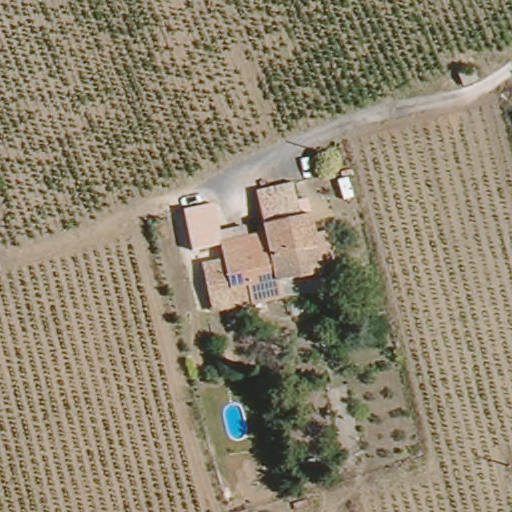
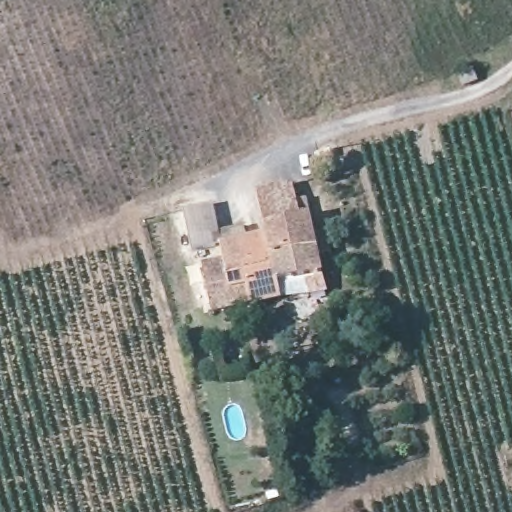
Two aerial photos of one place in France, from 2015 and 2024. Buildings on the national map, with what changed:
unchanged [(459,73),(477,65),(480,77),(462,83),(459,73)]
unchanged [(294,182),(302,221),(266,225),(262,189),(294,182)]
unchanged [(219,236),(219,244),(192,250),(183,210),(214,202),(220,230),(243,224),(247,235),(219,236)]
unchanged [(305,282),(279,286),(273,285),(271,305),(237,306),(237,286),(221,286),(220,259),(219,236),(266,234),(266,225),(302,221),(306,220),(318,218),(321,252),(322,293),(305,295),(305,282)]
unchanged [(220,259),(221,286),(237,286),(237,306),(212,314),(199,263),(220,259)]

